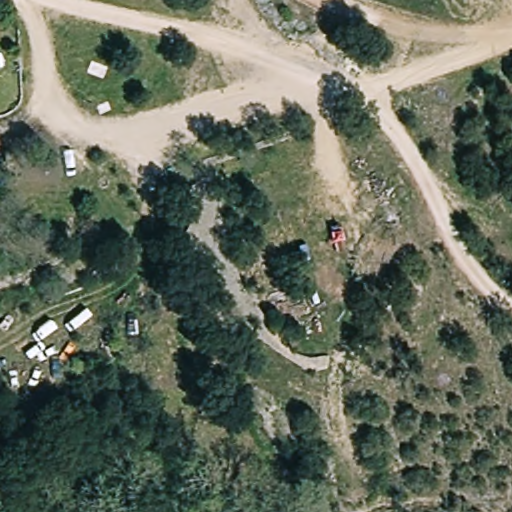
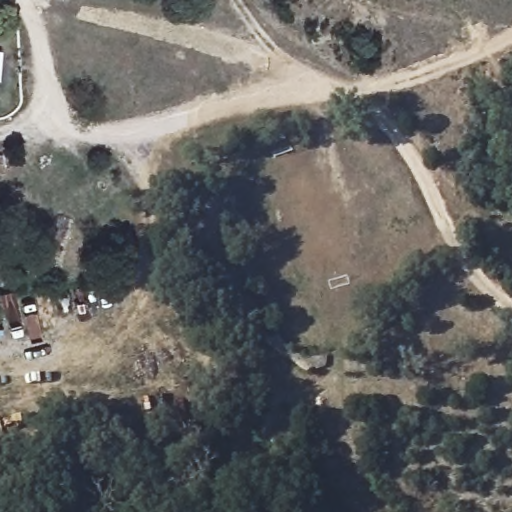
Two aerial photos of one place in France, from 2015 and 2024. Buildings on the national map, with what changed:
unchanged [(8,152),(7,161),(0,161),(0,152),(8,152)]

